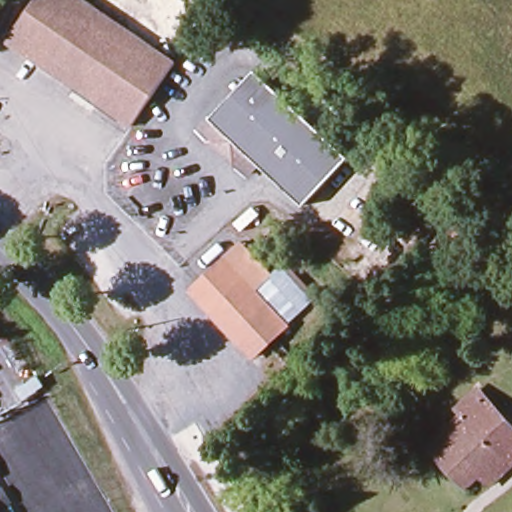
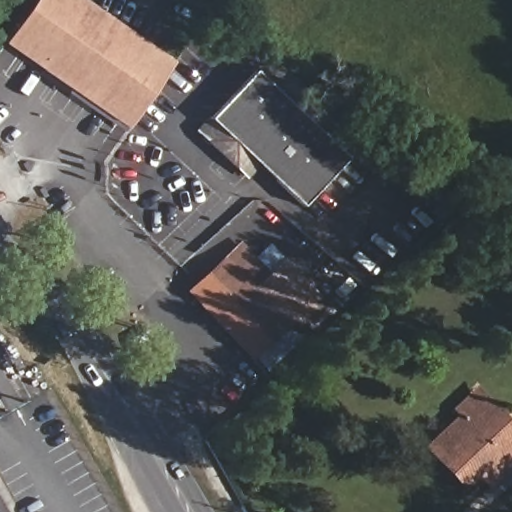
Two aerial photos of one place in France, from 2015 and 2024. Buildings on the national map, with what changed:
unchanged [(40,0),(74,0),(174,71),(129,133),(6,47),(40,0)]
unchanged [(311,206),(264,167),(252,179),(203,137),(256,74),(353,155),(311,206)]
unchanged [(442,233),(464,212),(478,227),(456,248),(442,233)]
unchanged [(222,263),(242,242),(272,272),(281,263),(315,299),(290,325),(283,330),(222,263)]
unchanged [(249,360),(190,293),(222,263),(283,330),(249,360)]
unchanged [(486,478),(468,496),(430,455),(445,440),(441,436),(447,430),(451,435),(468,418),(462,411),(478,396),(484,403),(512,433),(512,470),(495,486),(486,478)]

